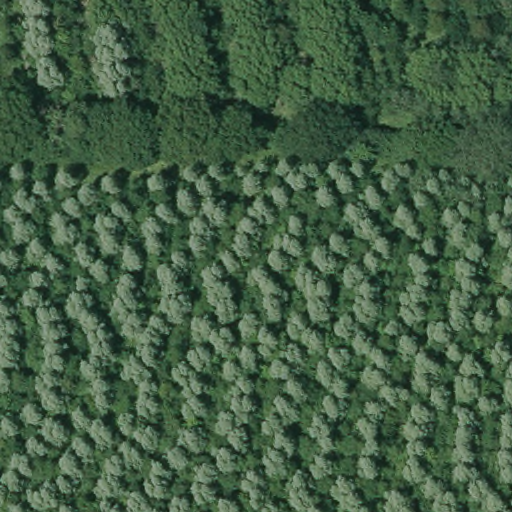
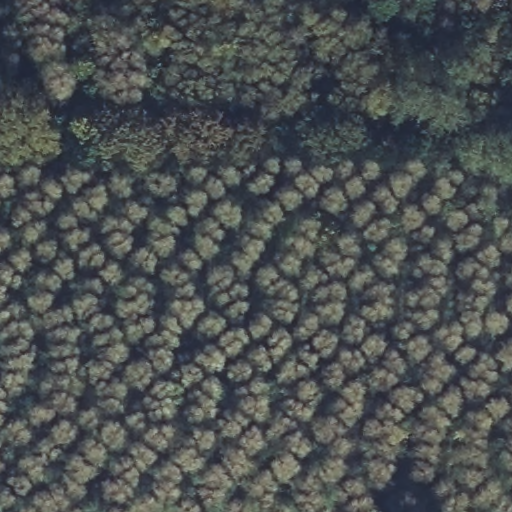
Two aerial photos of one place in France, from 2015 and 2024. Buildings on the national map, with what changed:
[]

